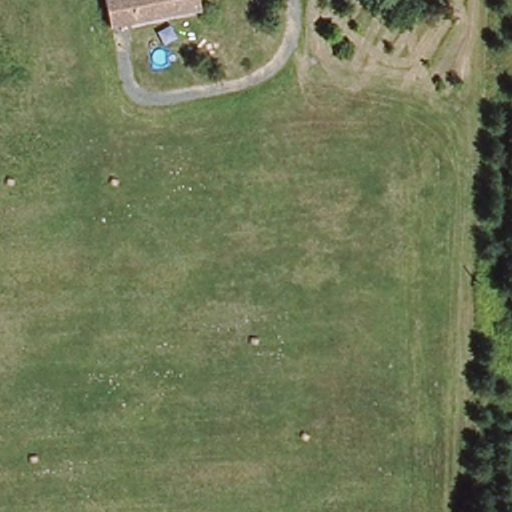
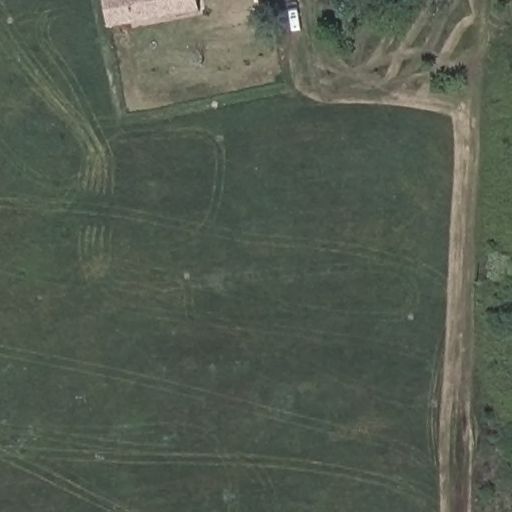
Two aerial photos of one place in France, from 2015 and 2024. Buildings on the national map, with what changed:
unchanged [(108,29),(102,0),(196,0),(199,11),(108,29)]

